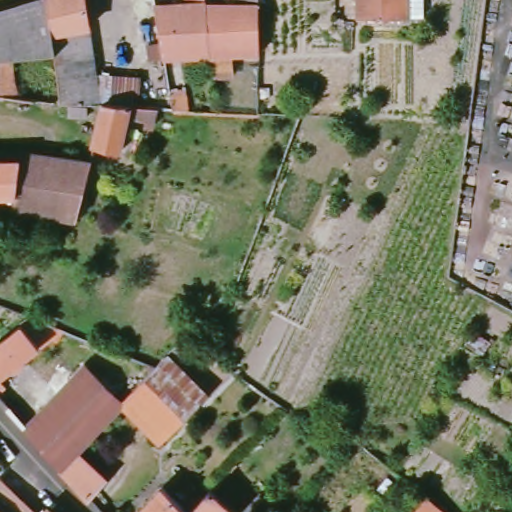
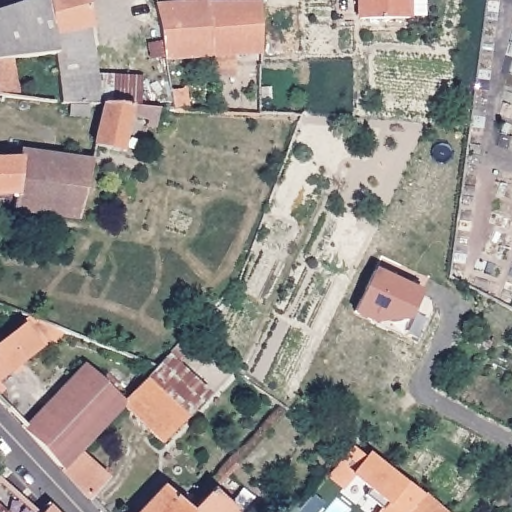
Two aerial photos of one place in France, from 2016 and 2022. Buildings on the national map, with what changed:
unchanged [(35,0),(85,0),(90,30),(102,105),(60,104),(53,54),(10,59),(18,98),(35,100),(32,118),(0,113),(0,11),(35,0)]
unchanged [(155,1),(163,0),(172,0),(172,4),(190,3),(188,0),(205,0),(205,4),(212,56),(180,59),(188,111),(173,110),(155,1)]
unchanged [(205,4),(238,1),(238,0),(257,0),(258,54),(232,56),(234,75),(214,78),(212,56),(205,4)]
unchanged [(409,19),(359,20),(359,0),(425,0),(425,19),(409,19)]
unchanged [(157,109),(153,127),(147,125),(147,121),(128,118),(120,153),(95,148),(102,105),(157,109)]
unchanged [(69,115),(70,106),(87,106),(86,116),(69,115)]
unchanged [(77,220),(12,212),(14,195),(0,197),(0,161),(18,160),(20,153),(92,161),(77,220)]
new [(407,319),(372,322),(353,312),(375,267),(422,289),(407,319)]
unchanged [(22,326),(40,348),(0,380),(0,343),(22,326)]
unchanged [(160,369),(127,405),(85,369),(105,347),(160,369)]
unchanged [(212,396),(167,444),(127,405),(160,369),(172,357),(212,396)]
unchanged [(30,430),(85,369),(127,405),(82,453),(109,478),(93,498),(66,469),(30,430)]
unchanged [(5,390),(0,394),(0,384),(5,390)]
new [(386,504),(355,479),(343,491),(327,477),(352,447),(365,457),(370,451),(422,494),(405,512),(379,512),(386,504)]
unchanged [(2,478),(37,512),(0,512),(0,479),(2,478)]
unchanged [(162,489),(187,512),(141,512),(162,489)]
unchanged [(212,492),(233,512),(192,512),(212,492)]
unchanged [(422,497),(442,512),(410,512),(422,497)]
unchanged [(47,507),(52,512),(44,512),(47,507)]

